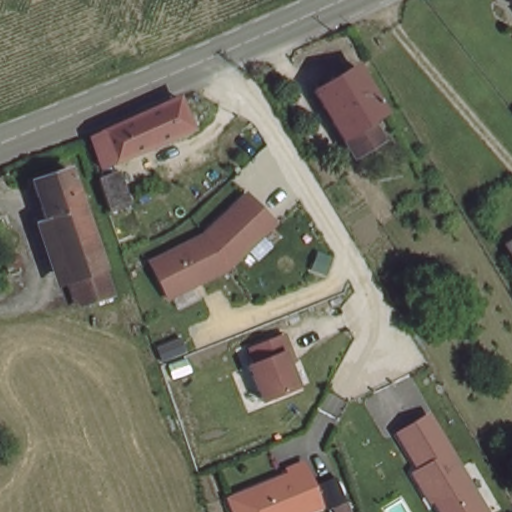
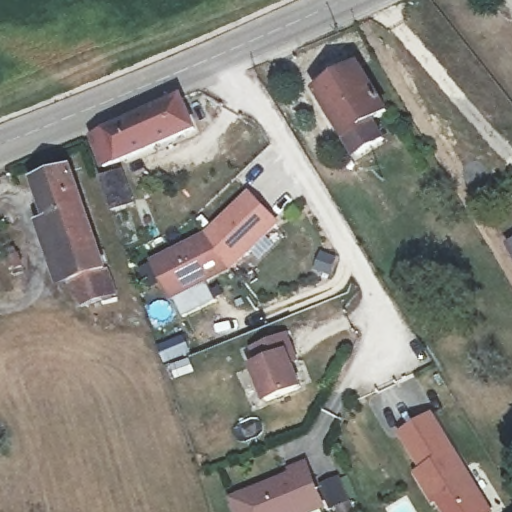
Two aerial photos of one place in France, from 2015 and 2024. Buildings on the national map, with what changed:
unchanged [(383,107),(368,116),(378,135),(356,148),(346,133),(344,135),(314,86),(354,60),(383,107)]
unchanged [(193,90),(198,101),(188,105),(196,125),(107,163),(96,130),(193,90)]
unchanged [(113,287),(83,298),(76,278),(72,279),(38,175),(71,162),(113,287)]
unchanged [(112,205),(109,197),(101,173),(123,166),(133,197),(112,205)]
unchanged [(280,219),(231,268),(168,294),(151,252),(204,227),(248,186),(280,219)]
unchanged [(512,239),(512,245),(509,240),(512,239)]
unchanged [(19,262),(7,266),(1,250),(13,245),(19,262)]
unchanged [(301,361),(296,363),(301,382),(261,397),(244,359),(254,355),(248,340),(286,329),(301,361)]
unchanged [(491,505),(480,512),(450,512),(438,491),(434,494),(418,466),(424,462),(402,425),(432,407),(491,505)]
unchanged [(290,463),(306,457),(324,500),(294,512),(233,512),(226,495),(292,468),(290,463)]
unchanged [(339,471),(349,495),(331,503),(321,479),(339,471)]

